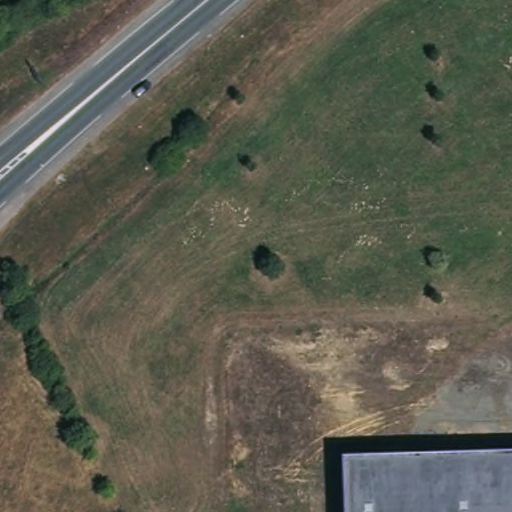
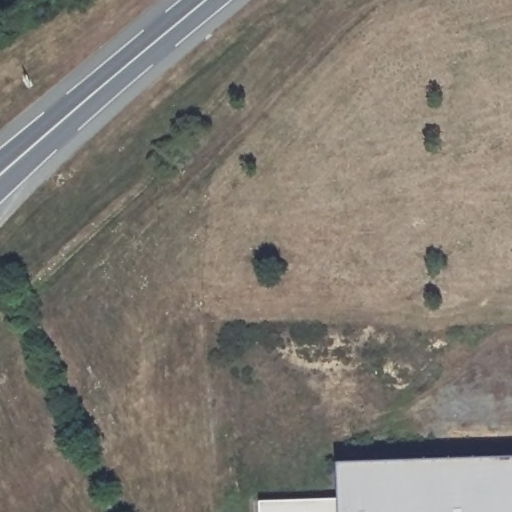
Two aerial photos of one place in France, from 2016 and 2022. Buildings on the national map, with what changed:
unchanged [(512,455),(512,512),(341,512),(340,462),(512,455)]
new [(341,498),(342,512),(259,512),(259,500),(341,498)]

